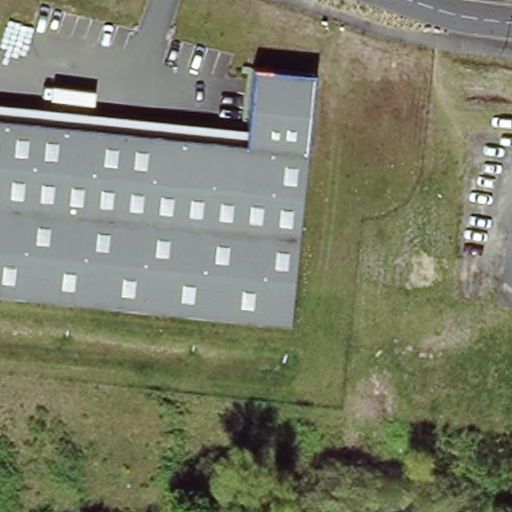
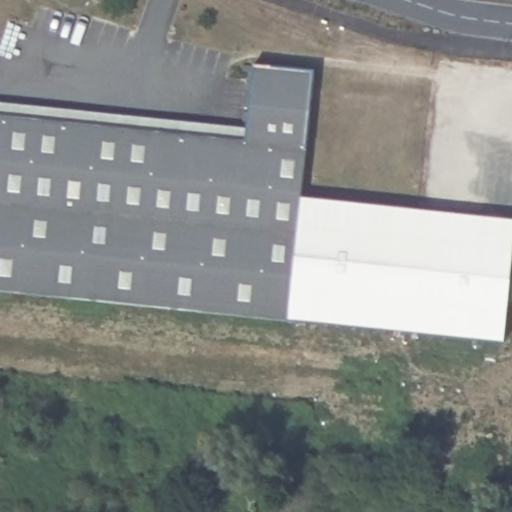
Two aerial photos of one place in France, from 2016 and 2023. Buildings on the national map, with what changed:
unchanged [(247,126),(253,67),(313,74),(288,321),(0,292),(0,103),(247,126)]
new [(512,222),(512,251),(503,343),(288,321),(301,199),(512,222)]

